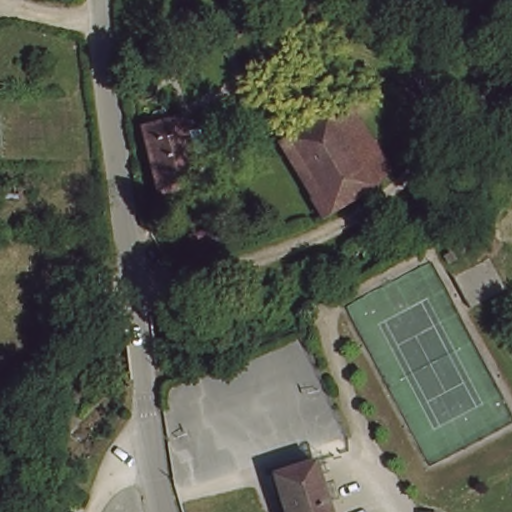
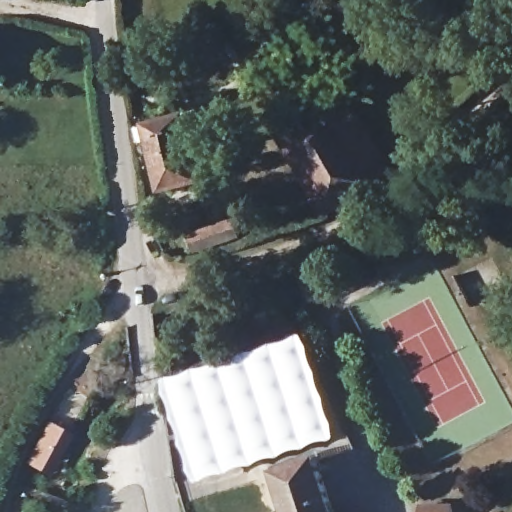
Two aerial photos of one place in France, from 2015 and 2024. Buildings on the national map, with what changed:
unchanged [(325,217),(277,127),(322,104),(327,112),(349,100),(387,171),(325,217)]
unchanged [(165,189),(145,123),(182,113),(199,183),(165,189)]
demolished [(185,252),(234,237),(240,252),(190,267),(185,252)]
new [(302,346),(330,432),(198,474),(170,388),(302,346)]
unchanged [(310,452),(334,512),(270,512),(255,473),(310,452)]
demolished [(384,512),(383,506),(402,504),(403,512),(384,512)]
unchanged [(415,512),(415,505),(448,504),(448,512),(415,512)]

